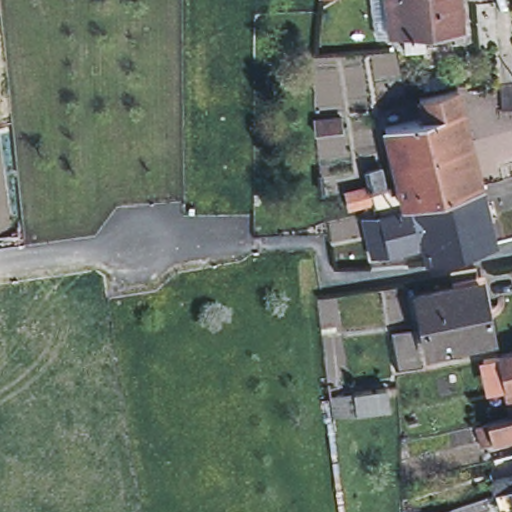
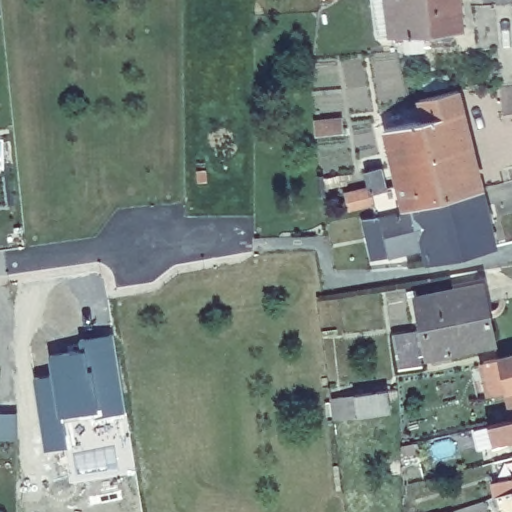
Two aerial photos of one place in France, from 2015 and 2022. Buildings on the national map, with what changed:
unchanged [(408,34),(395,35),(390,0),(465,0),(465,6),(468,29),(428,32),(430,48),(410,50),(408,34)]
unchanged [(512,84),(512,112),(501,112),(498,85),(512,84)]
unchanged [(423,118),(418,98),(455,88),(461,111),(470,143),(470,144),(392,162),(384,127),(423,118)]
unchanged [(342,118),(344,130),(323,133),(321,120),(342,118)]
unchanged [(392,162),(470,144),(475,162),(481,187),(414,203),(403,206),(401,198),(373,205),(365,171),(393,165),(392,162)]
unchanged [(413,206),(415,205),(414,203),(481,187),(487,211),(418,228),(413,207),(413,206)]
unchanged [(367,190),(370,205),(345,210),(341,195),(367,190)]
unchanged [(363,219),(380,215),(413,207),(418,228),(422,245),(389,253),(371,257),(363,219)]
unchanged [(487,211),(495,245),(427,262),(422,245),(418,228),(487,211)]
unchanged [(475,268),(477,282),(460,285),(456,271),(475,268)]
unchanged [(495,345),(426,357),(428,368),(398,374),(395,352),(391,336),(420,330),(413,295),(485,282),(495,345)]
new [(51,377),(48,358),(80,354),(78,341),(113,337),(125,415),(95,420),(95,416),(61,420),(66,451),(45,452),(33,380),(51,377)]
unchanged [(512,354),(512,388),(505,389),(503,385),(488,389),(483,361),(498,358),(512,354)]
unchanged [(384,392),(388,414),(329,425),(325,401),(384,392)]
unchanged [(491,445),(486,424),(483,411),(500,406),(512,405),(512,438),(491,445)]
unchanged [(491,481),(512,478),(512,512),(500,512),(495,494),(491,481)]

